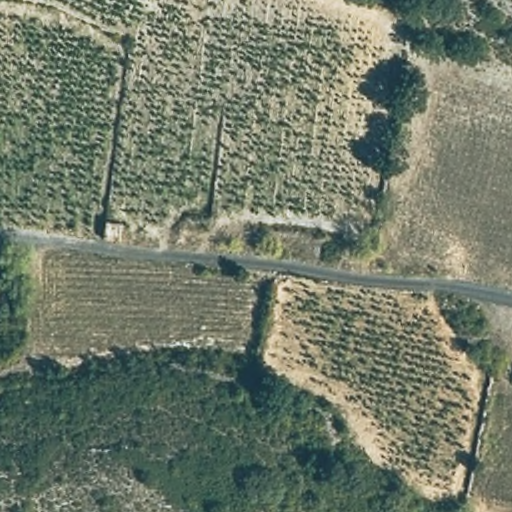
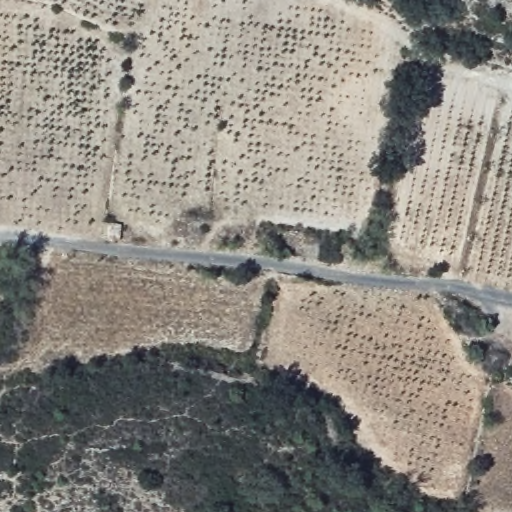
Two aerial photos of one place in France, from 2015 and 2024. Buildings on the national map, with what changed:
unchanged [(120,221),(118,236),(102,237),(105,215),(120,221)]

